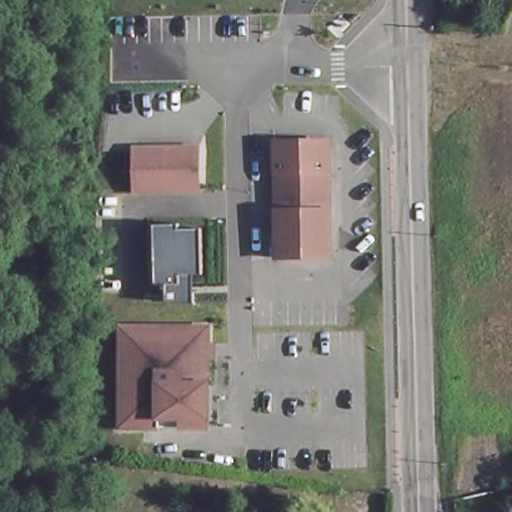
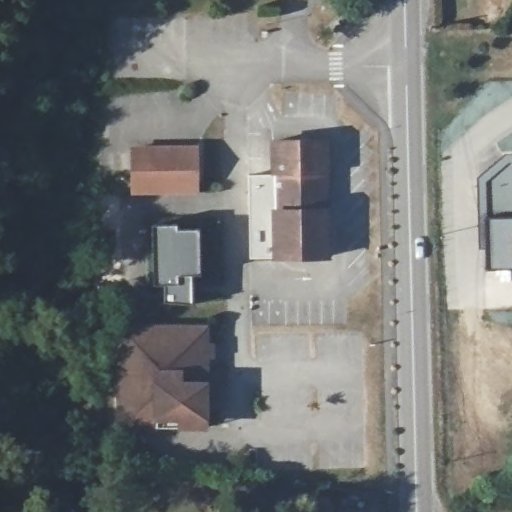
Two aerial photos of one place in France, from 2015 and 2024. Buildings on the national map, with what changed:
unchanged [(329,140),(331,255),(276,258),(276,141),(329,140)]
unchanged [(198,142),(199,193),(133,194),(136,144),(198,142)]
new [(481,177),(506,158),(512,158),(512,267),(479,267),(481,177)]
unchanged [(201,275),(193,276),(191,303),(166,302),(166,284),(156,284),(154,225),(178,225),(179,229),(199,229),(201,275)]
unchanged [(211,325),(212,381),(208,382),(209,429),(179,428),(120,426),(122,324),(211,325)]

